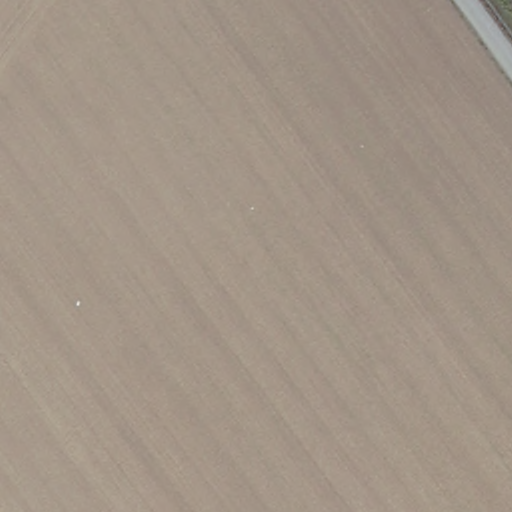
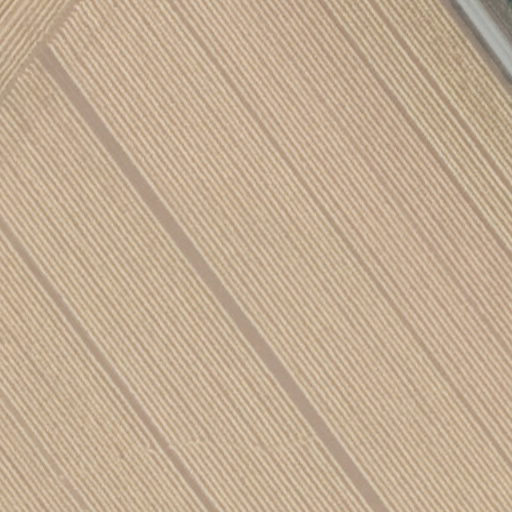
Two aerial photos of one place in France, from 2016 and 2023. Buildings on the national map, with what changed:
[]

